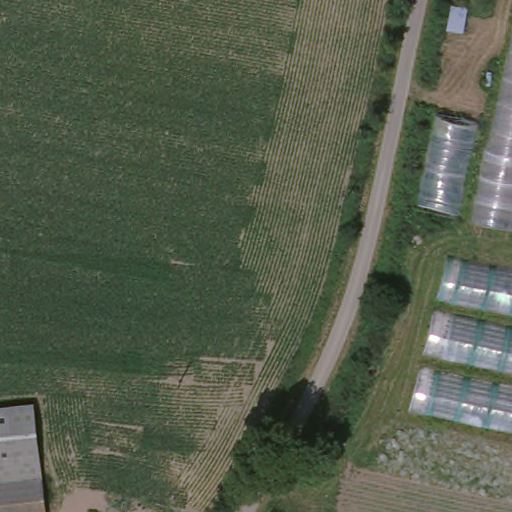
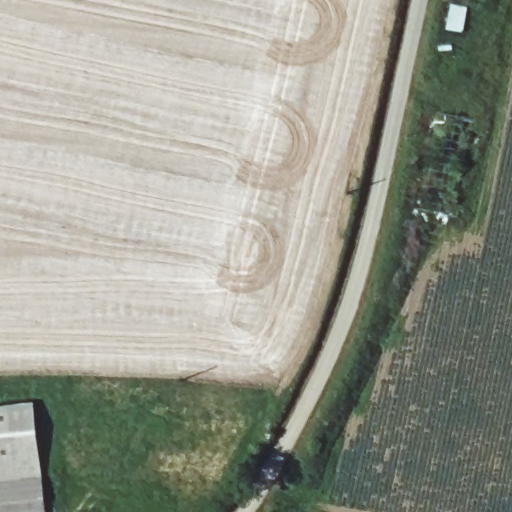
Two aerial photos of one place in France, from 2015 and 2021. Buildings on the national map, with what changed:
unchanged [(474,219),(512,37),(512,228),(474,219)]
unchanged [(479,118),(456,216),(412,207),(434,111),(479,118)]
demolished [(411,407),(444,256),(512,269),(512,426),(411,407)]
unchanged [(49,512),(0,512),(0,406),(34,402),(49,512)]

